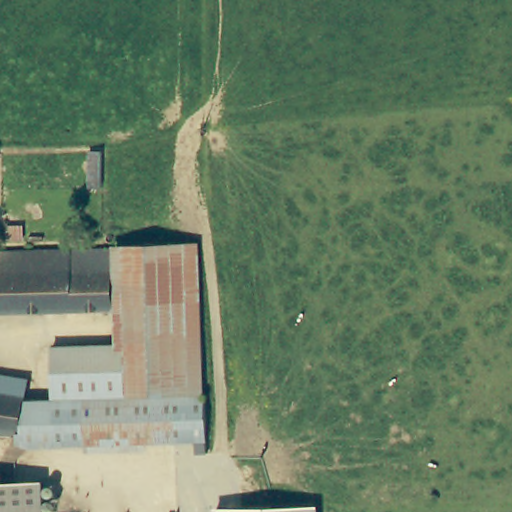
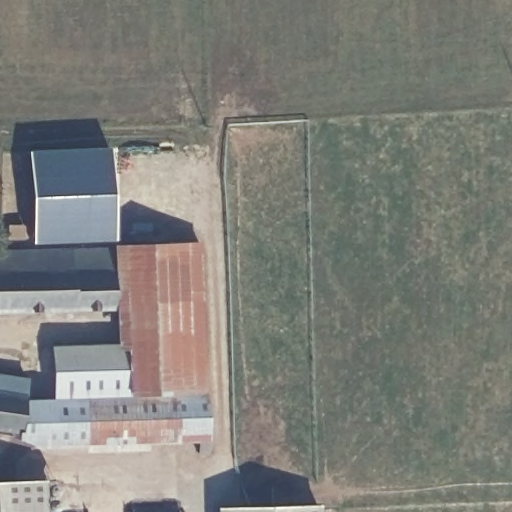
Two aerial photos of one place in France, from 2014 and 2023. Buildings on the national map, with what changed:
new [(112,241),(31,245),(27,151),(110,150),(112,241)]
unchanged [(129,343),(123,246),(197,242),(204,391),(113,395),(110,344),(129,343)]
unchanged [(107,247),(110,306),(0,311),(0,252),(107,247)]
unchanged [(113,395),(51,398),(48,347),(110,344),(113,395)]
unchanged [(18,430),(0,427),(0,373),(27,378),(23,401),(18,430)]
unchanged [(204,393),(207,450),(196,451),(175,452),(174,438),(38,445),(18,430),(23,401),(204,393)]
unchanged [(41,480),(42,512),(0,512),(0,481),(41,480)]
unchanged [(317,507),(318,512),(214,512),(214,509),(317,507)]

